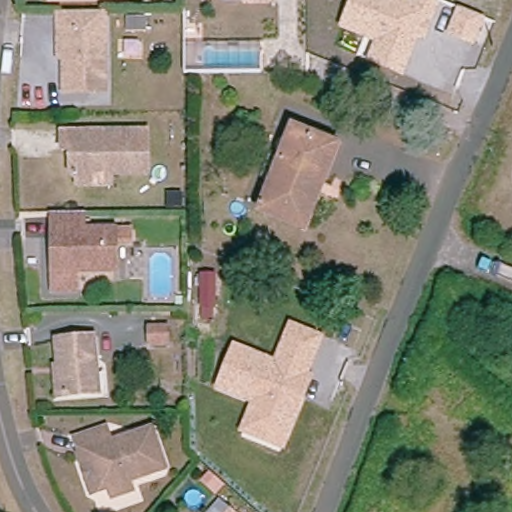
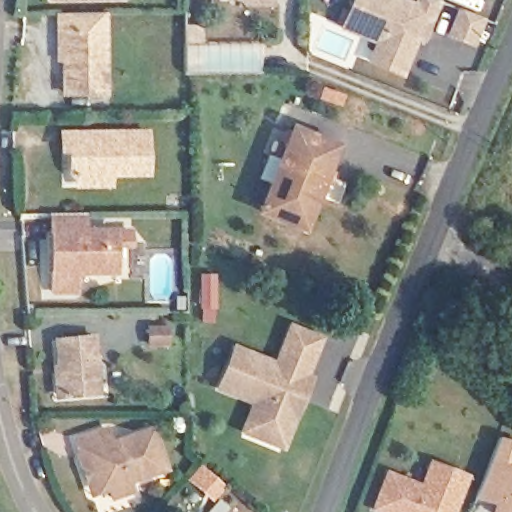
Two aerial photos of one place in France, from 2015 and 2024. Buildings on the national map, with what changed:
unchanged [(50,4),(50,0),(123,0),(123,5),(50,4)]
unchanged [(240,6),(240,0),(275,0),(275,6),(240,6)]
unchanged [(414,0),(441,0),(443,1),(426,45),(417,41),(404,75),(366,61),(373,42),(338,29),(349,0),(412,0),(414,0)]
unchanged [(486,18),(474,49),(445,38),(457,6),(486,18)]
unchanged [(69,95),(69,69),(58,69),(58,43),(59,20),(103,20),(104,96),(69,95)]
demolished [(210,26),(211,61),(197,61),(197,25),(210,26)]
unchanged [(303,242),(257,221),(290,135),(340,154),(303,242)]
unchanged [(99,184),(74,185),(73,156),(64,156),(63,138),(150,138),(151,178),(115,178),(115,184),(99,184)]
unchanged [(55,295),(55,279),(54,214),(88,214),(89,234),(115,234),(116,279),(74,279),(74,296),(55,295)]
unchanged [(168,345),(143,344),(144,319),(166,320),(168,345)]
unchanged [(275,359),(288,322),(324,337),(309,373),(316,376),(287,452),(239,434),(250,401),(215,388),(233,343),(275,359)]
unchanged [(99,344),(103,397),(63,399),(59,346),(99,344)]
unchanged [(119,504),(115,492),(104,495),(93,499),(81,466),(87,464),(81,447),(113,436),(116,450),(155,436),(168,473),(138,483),(143,496),(119,504)]
new [(512,441),(512,512),(491,512),(494,504),(477,499),(499,438),(512,441)]
new [(423,485),(428,472),(433,461),(469,476),(464,488),(455,512),(386,512),(374,507),(388,471),(423,485)]
unchanged [(237,512),(232,512),(234,509),(237,512)]

